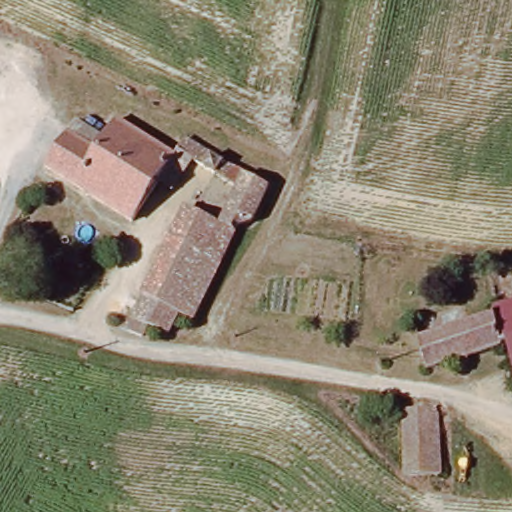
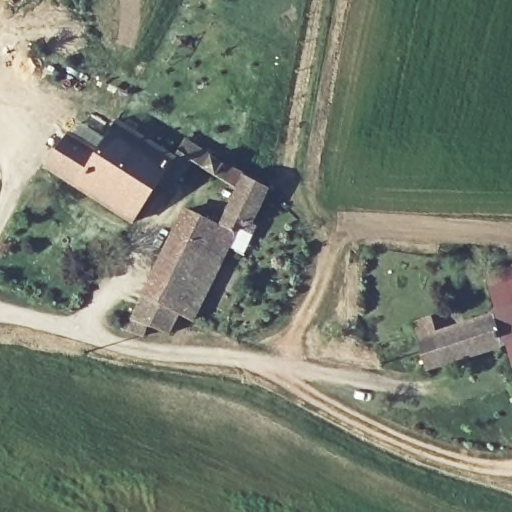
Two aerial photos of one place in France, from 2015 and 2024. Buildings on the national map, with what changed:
unchanged [(42,178),(87,104),(174,152),(187,131),(272,182),(241,236),(235,232),(195,307),(188,304),(170,334),(158,328),(148,343),(126,334),(195,202),(226,219),(242,192),(181,159),(130,222),(42,178)]
unchanged [(421,354),(410,303),(466,293),(471,311),(512,302),(512,368),(505,337),(421,354)]
demolished [(402,409),(439,408),(441,473),(403,476),(402,409)]

